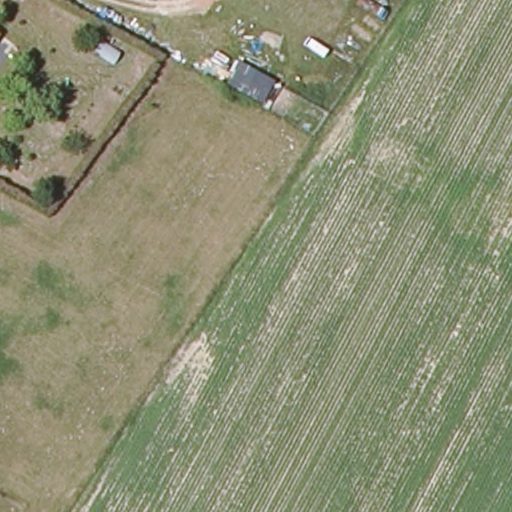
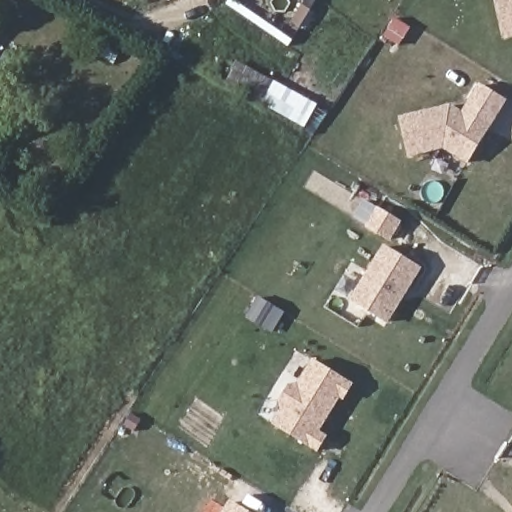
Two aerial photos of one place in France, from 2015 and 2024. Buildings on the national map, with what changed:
new [(496,0),(512,0),(512,35),(503,36),(496,0)]
new [(236,61),(318,105),(305,128),(224,84),(236,61)]
new [(462,116),(470,102),(479,87),(503,102),(494,116),(486,130),(465,163),(443,149),(409,156),(399,119),(448,108),(462,116)]
new [(377,210),(398,223),(388,241),(367,228),(377,210)]
new [(386,323),(350,301),(383,248),(418,270),(404,292),(400,300),(386,323)]
new [(295,352),(312,363),(297,387),(289,389),(280,403),(282,411),(274,425),(257,415),(295,352)]
new [(282,411),(280,403),(289,389),(297,387),(312,363),(351,386),(343,400),(339,398),(317,433),(325,438),(317,451),(274,425),(282,411)]
new [(245,512),(224,512),(230,503),(245,512)]

